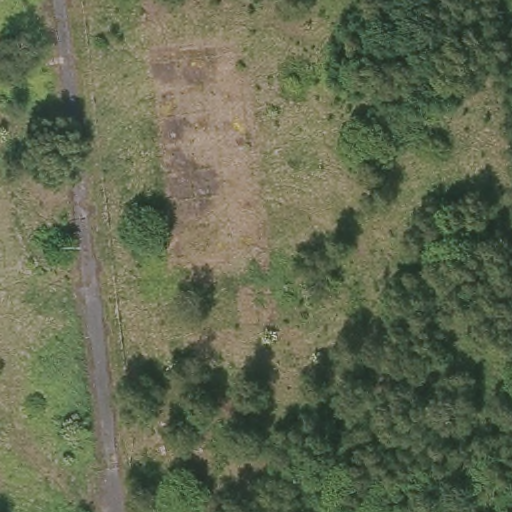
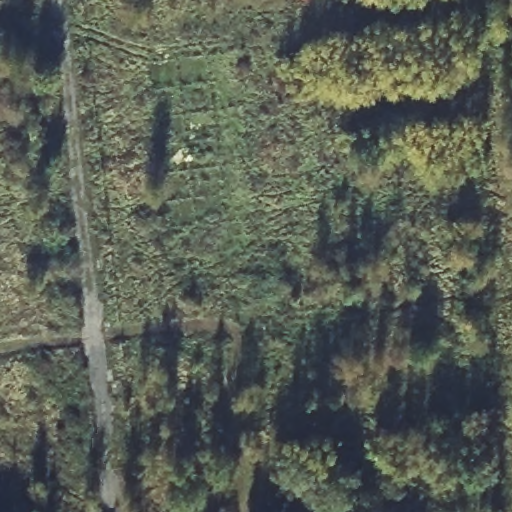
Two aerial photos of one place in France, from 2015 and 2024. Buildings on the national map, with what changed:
[]

